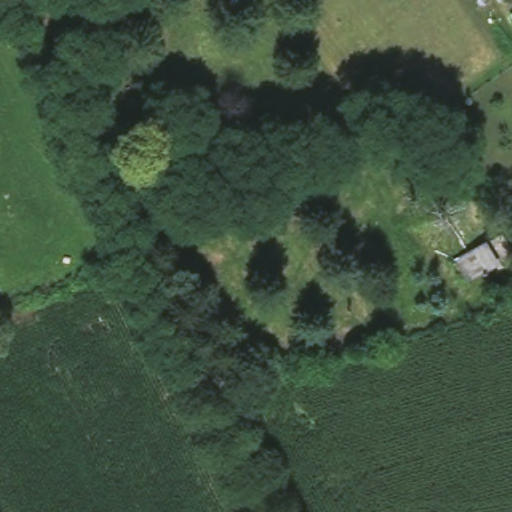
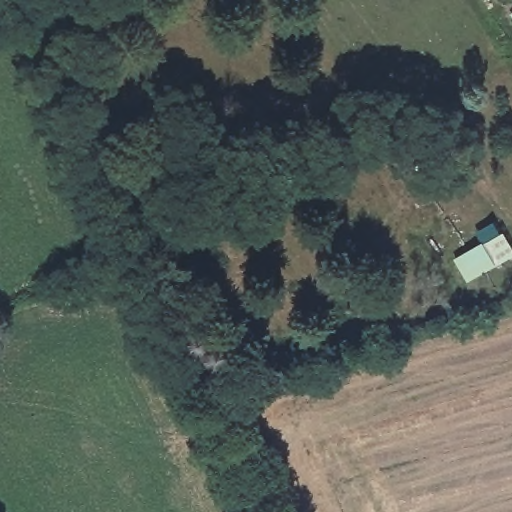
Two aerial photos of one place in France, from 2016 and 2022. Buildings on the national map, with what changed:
unchanged [(512,10),(512,14),(511,11),(512,10)]

